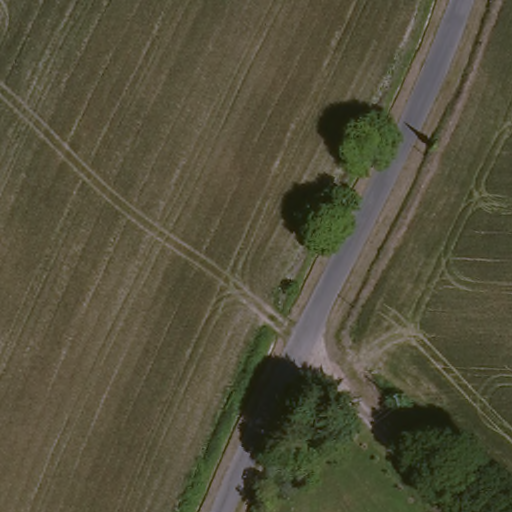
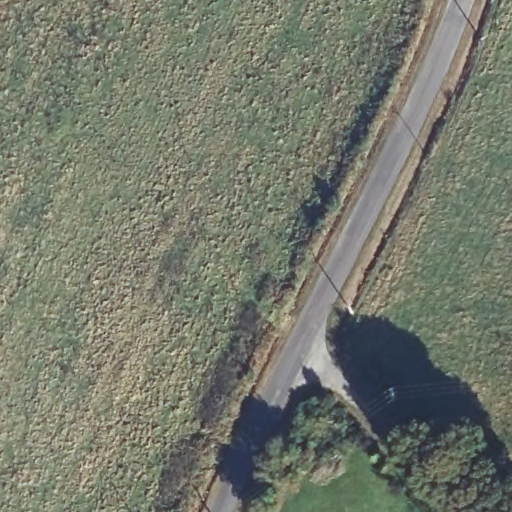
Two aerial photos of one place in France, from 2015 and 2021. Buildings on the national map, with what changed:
[]

